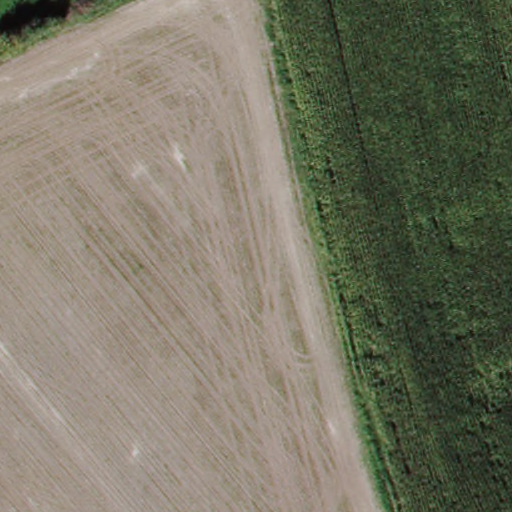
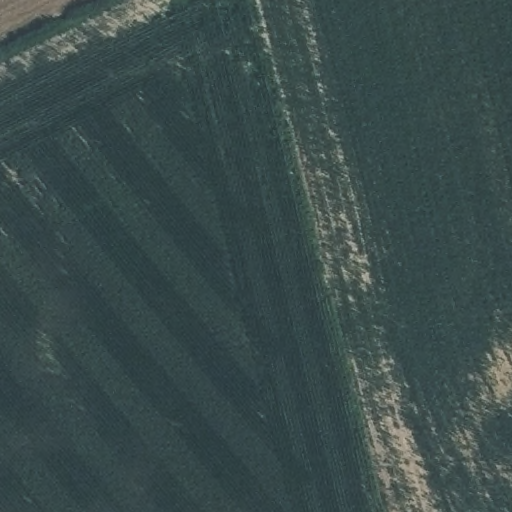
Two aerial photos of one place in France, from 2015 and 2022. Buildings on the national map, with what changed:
[]

